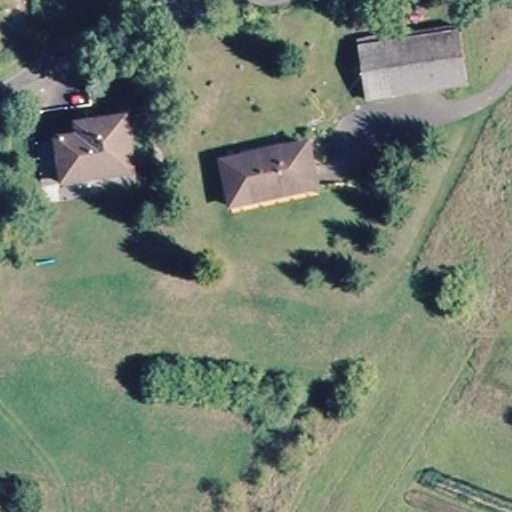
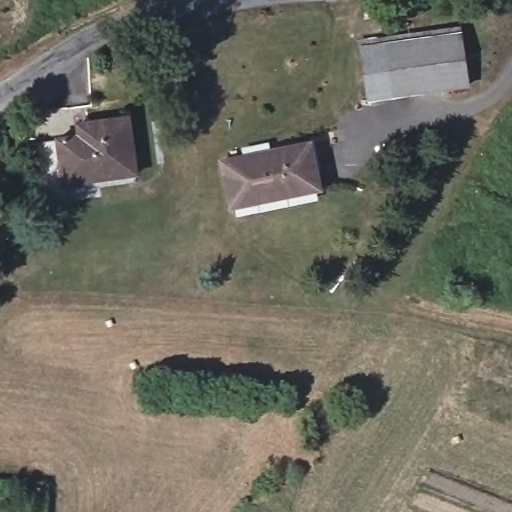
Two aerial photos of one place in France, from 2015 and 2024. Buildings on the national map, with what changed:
unchanged [(454,32),(465,80),(367,99),(358,52),(454,32)]
unchanged [(91,132),(91,124),(141,121),(145,174),(54,179),(51,135),(91,132)]
unchanged [(305,153),(314,197),(230,215),(220,171),(305,153)]

